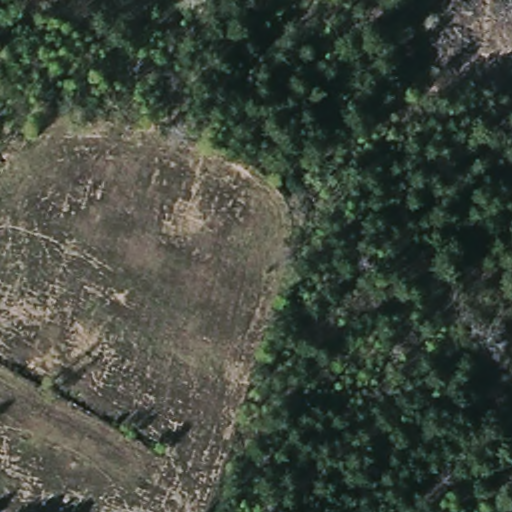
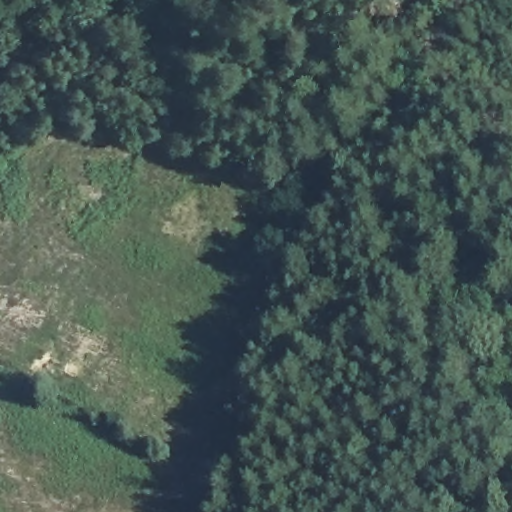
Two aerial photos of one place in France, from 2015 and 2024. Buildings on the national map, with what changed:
[]

